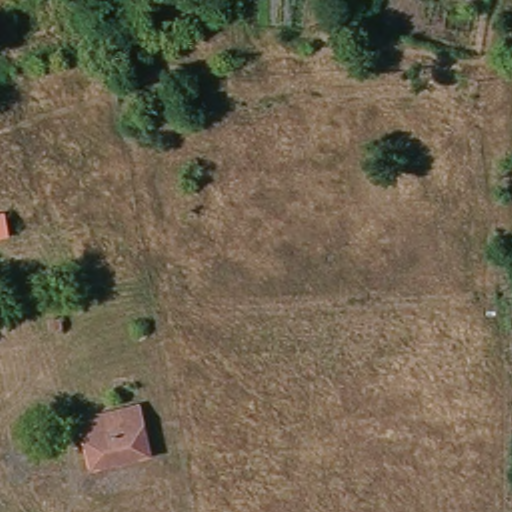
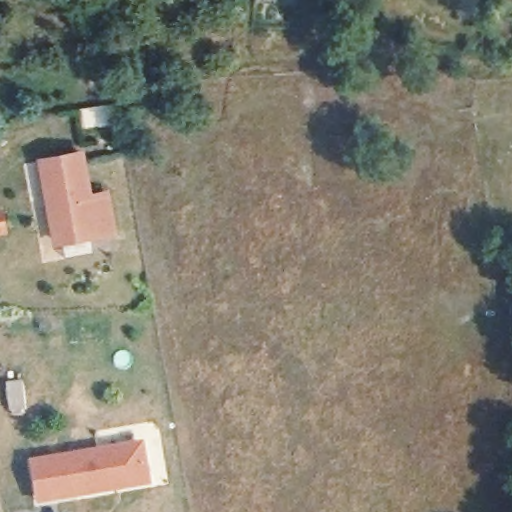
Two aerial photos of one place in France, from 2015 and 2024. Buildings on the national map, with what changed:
new [(77,156),(87,199),(105,196),(113,233),(57,245),(39,164),(77,156)]
unchanged [(0,238),(0,220),(1,220),(4,237),(0,238)]
new [(22,379),(26,413),(9,414),(5,380),(22,379)]
demolished [(133,407),(147,457),(88,471),(79,420),(133,407)]
new [(152,486),(74,501),(66,453),(143,440),(152,486)]
new [(66,453),(74,500),(36,506),(28,460),(66,453)]

